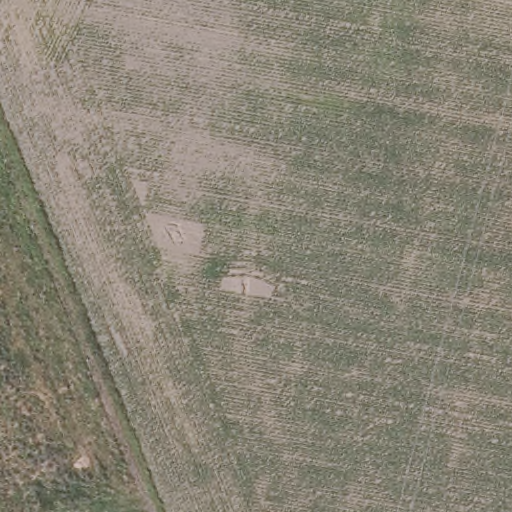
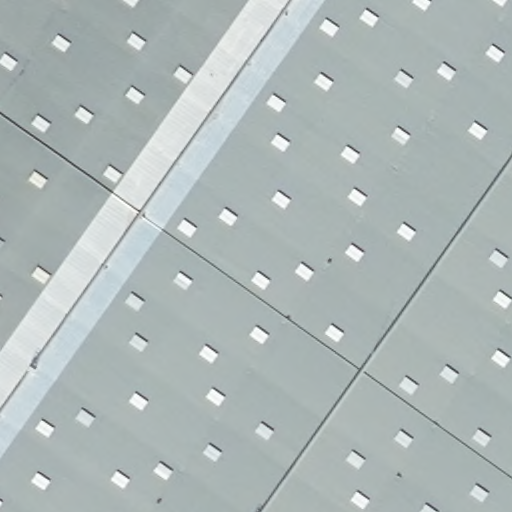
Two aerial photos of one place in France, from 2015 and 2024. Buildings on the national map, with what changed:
new [(0,0),(512,0),(512,512),(0,512),(0,0)]

